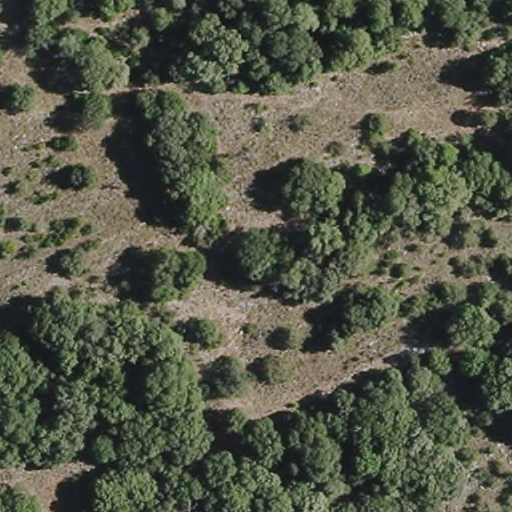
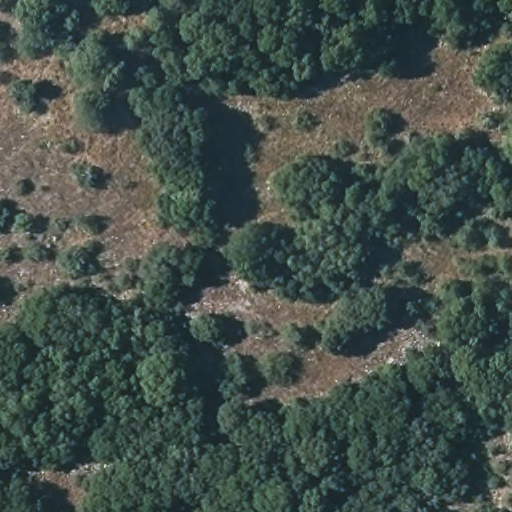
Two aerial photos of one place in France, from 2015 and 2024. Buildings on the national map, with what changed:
[]

